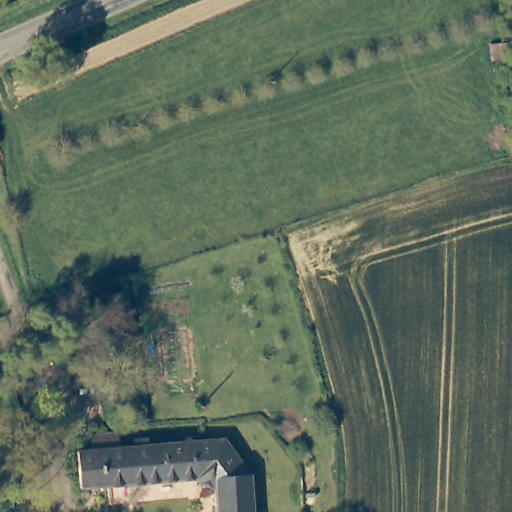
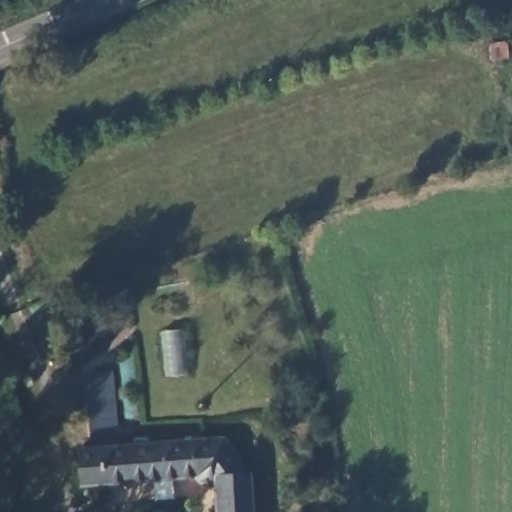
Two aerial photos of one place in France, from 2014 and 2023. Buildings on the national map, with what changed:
new [(116,433),(87,435),(84,375),(113,372),(116,433)]
unchanged [(72,448),(88,448),(87,435),(116,433),(116,447),(193,443),(220,442),(244,477),(246,512),(212,512),(211,485),(201,486),(192,479),(103,484),(95,484),(75,485),(72,448)]

